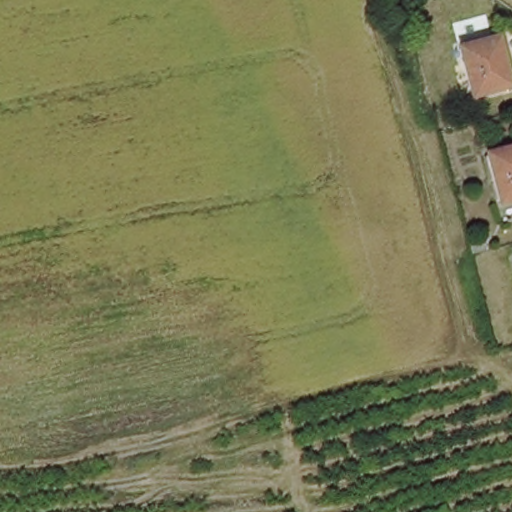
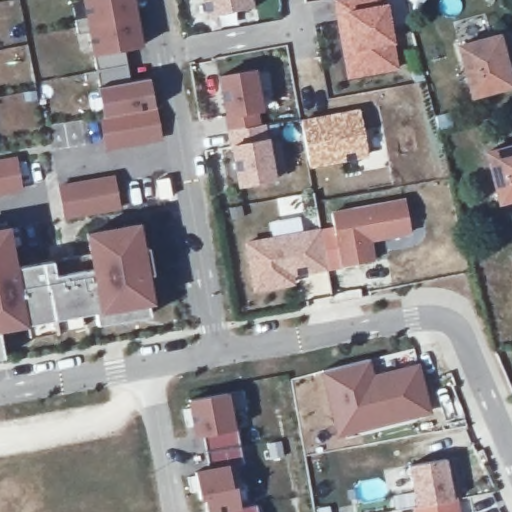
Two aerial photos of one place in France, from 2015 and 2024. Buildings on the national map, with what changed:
new [(105,152),(102,118),(97,90),(92,56),(83,0),(133,0),(141,49),(124,52),(130,84),(150,81),(154,107),(162,142),(105,152)]
new [(258,7),(214,16),(211,0),(257,0),(258,7)]
new [(342,29),(337,0),(387,0),(398,65),(359,72),(349,73),(342,29)]
unchanged [(512,79),(473,89),(460,40),(501,28),(512,67),(512,79)]
new [(255,67),(262,106),(257,107),(260,122),(230,127),(220,73),(255,67)]
new [(369,109),(376,150),(305,160),(300,119),(369,109)]
new [(260,122),(265,121),(275,175),(240,182),(230,127),(260,122)]
unchanged [(489,148),(512,141),(512,196),(502,199),(489,148)]
new [(0,197),(0,162),(17,160),(23,193),(0,197)]
new [(64,220),(58,186),(113,177),(119,210),(64,220)]
new [(406,197),(411,228),(370,236),(374,257),(341,262),(332,210),(406,197)]
new [(147,306),(149,316),(97,325),(95,313),(79,316),(80,327),(30,337),(27,329),(0,334),(0,229),(8,228),(17,268),(50,262),(53,277),(91,271),(85,233),(139,222),(154,305),(147,306)]
new [(285,281),(255,287),(247,240),(321,227),(328,265),(292,271),(293,280),(285,281)]
new [(3,360),(0,361),(0,343),(3,360)]
new [(338,438),(322,372),(369,361),(373,375),(418,365),(430,415),(338,438)]
new [(242,462),(229,464),(233,487),(236,487),(240,507),(256,507),(257,512),(206,512),(204,500),(199,501),(195,471),(207,468),(203,436),(194,437),(187,401),(229,394),(236,432),(242,462)]
new [(418,506),(410,467),(446,459),(453,499),(456,499),(459,512),(414,512),(412,507),(418,506)]

